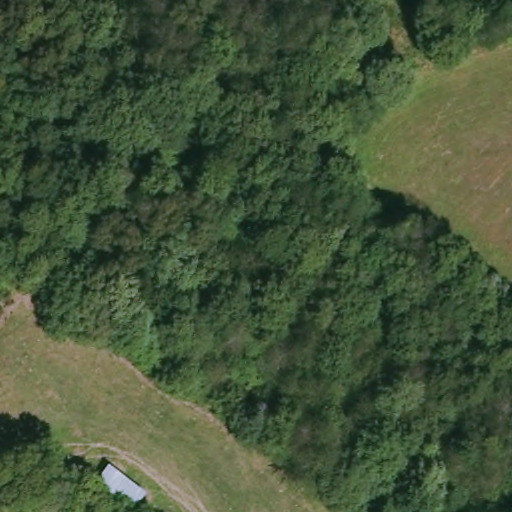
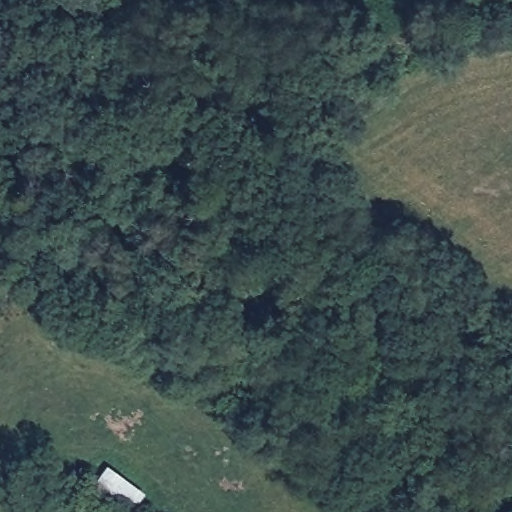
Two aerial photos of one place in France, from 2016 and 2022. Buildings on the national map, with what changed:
unchanged [(109,463),(151,494),(138,512),(98,486),(109,463)]

